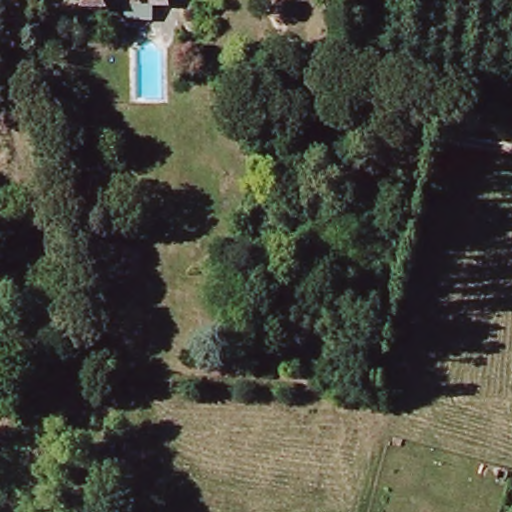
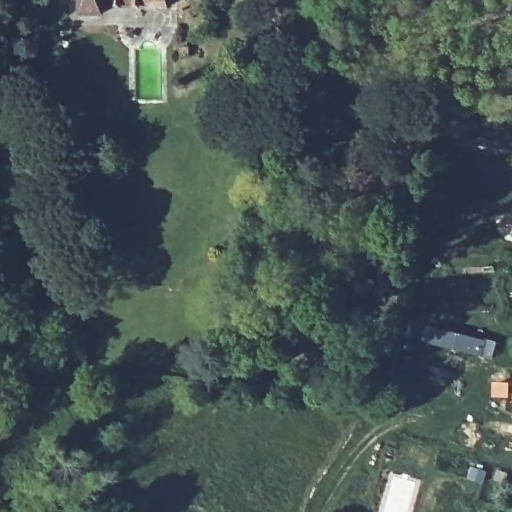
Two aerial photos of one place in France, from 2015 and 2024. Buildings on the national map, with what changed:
unchanged [(100,17),(78,16),(78,0),(169,0),(169,8),(100,7),(100,17)]
new [(425,321),(496,340),(492,359),(420,340),(425,321)]

